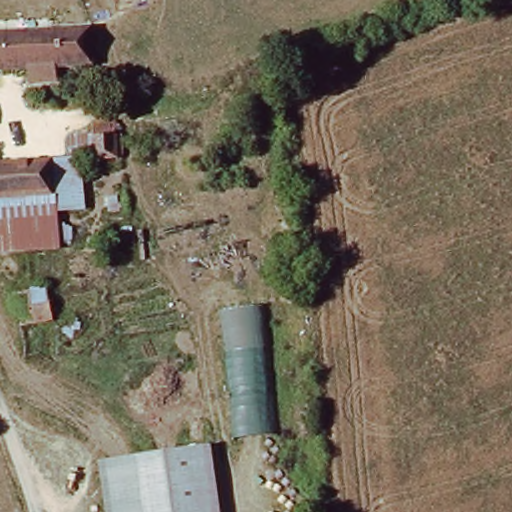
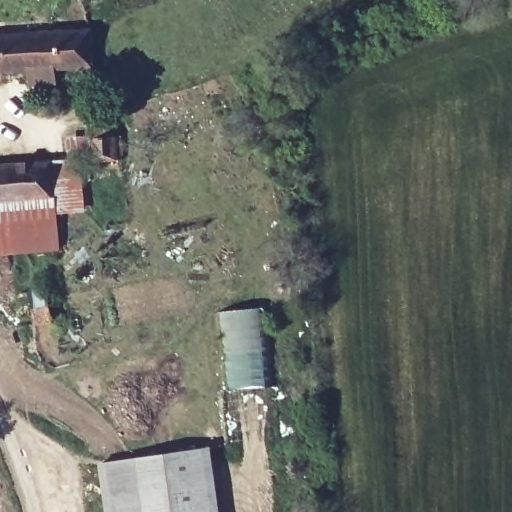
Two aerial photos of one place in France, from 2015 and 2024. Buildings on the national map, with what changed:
unchanged [(95,71),(0,75),(0,43),(1,43),(93,39),(95,71)]
unchanged [(68,164),(67,141),(92,140),(93,128),(115,126),(115,140),(120,140),(122,160),(98,161),(77,161),(83,214),(56,217),(53,218),(49,165),(68,164)]
unchanged [(53,218),(55,248),(29,252),(6,253),(0,253),(0,168),(49,165),(53,218)]
unchanged [(217,316),(266,312),(279,438),(231,443),(217,316)]
unchanged [(99,462),(211,446),(221,512),(106,512),(99,462)]

